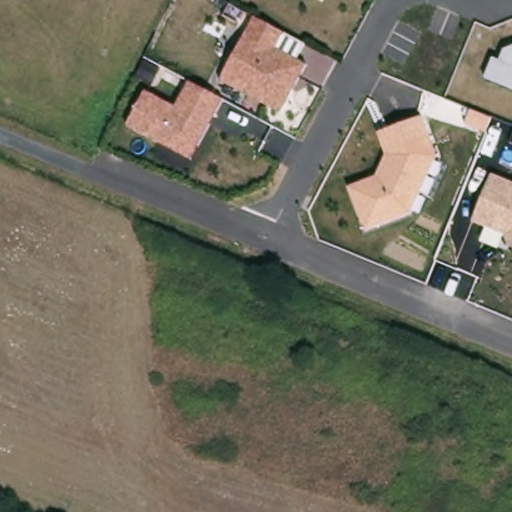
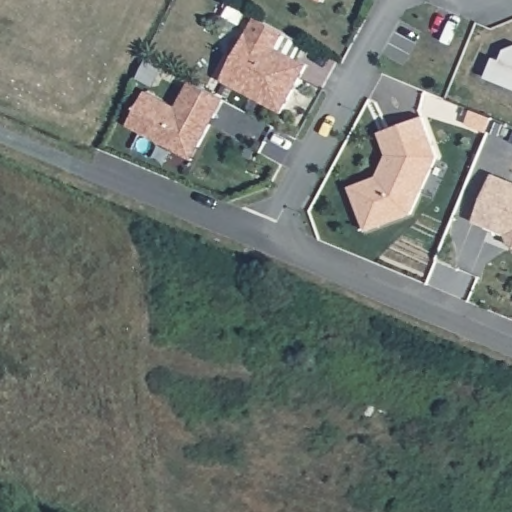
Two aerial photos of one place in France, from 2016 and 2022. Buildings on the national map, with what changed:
unchanged [(321,5),(313,0),(323,0),(321,5)]
unchanged [(222,80),(255,15),(285,31),(276,49),(305,64),(281,112),(222,80)]
unchanged [(483,76),(488,60),(512,47),(512,89),(483,76)]
unchanged [(127,125),(146,90),(177,105),(190,83),(222,98),(192,158),(127,125)]
unchanged [(349,186),(377,175),(387,151),(379,131),(421,116),(436,158),(412,210),(366,227),(349,186)]
unchanged [(492,174),(512,181),(512,244),(509,243),(505,232),(474,222),(492,174)]

